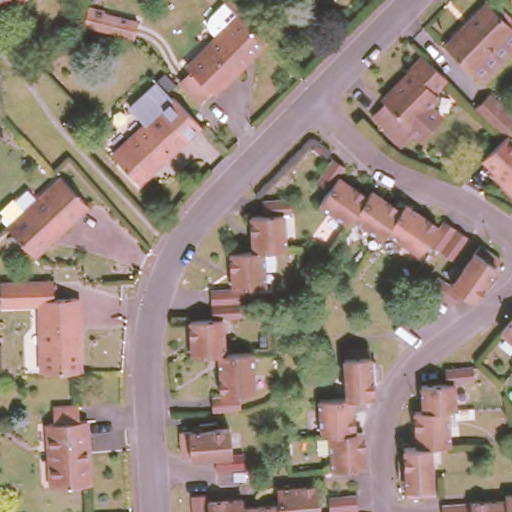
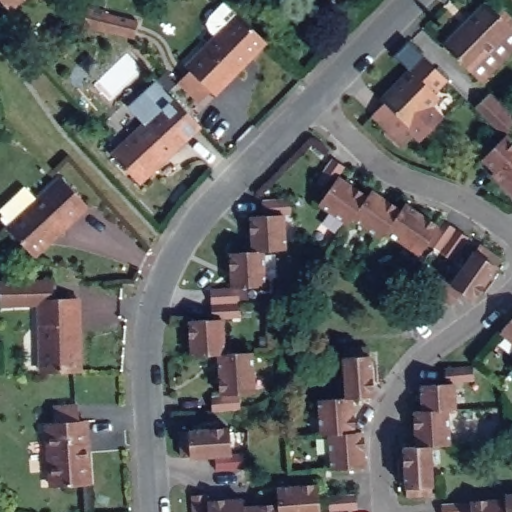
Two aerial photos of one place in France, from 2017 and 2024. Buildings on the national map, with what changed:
unchanged [(4,0),(14,0),(8,5),(4,0)]
unchanged [(440,38),(477,0),(497,0),(508,11),(504,16),(507,18),(465,62),(440,38)]
unchanged [(89,6),(105,11),(104,13),(137,23),(132,41),(83,26),(89,6)]
unchanged [(187,73),(217,42),(209,35),(206,29),(210,22),(224,7),(237,20),(264,46),(212,99),(209,95),(197,107),(179,87),(190,76),(187,73)]
unchanged [(507,18),(512,24),(512,37),(477,73),(465,62),(507,18)]
unchanged [(415,129),(402,142),(372,111),(384,99),(382,97),(411,67),(409,65),(422,52),(447,76),(434,89),(438,92),(427,102),(442,117),(422,136),(415,129)]
unchanged [(175,136),(185,147),(135,192),(110,165),(159,122),(155,118),(158,116),(148,105),(160,93),(169,102),(188,124),(175,136)]
unchanged [(511,125),(499,137),(470,109),(482,97),(511,125)]
unchanged [(512,149),(512,197),(488,172),(490,171),(477,159),(499,137),(512,150),(512,149)]
unchanged [(449,254),(425,237),(415,251),(382,228),(377,235),(348,215),(344,221),(315,201),(324,187),(312,179),(328,156),(340,164),(334,174),(362,194),(367,187),(395,208),(400,201),(435,224),(440,217),(464,234),(449,254)]
unchanged [(5,208),(29,185),(40,197),(65,175),(90,201),(37,251),(12,224),(13,224),(5,215),(5,208)]
unchanged [(213,391),(223,390),(220,348),(193,350),(191,315),(214,313),(212,283),(234,282),(231,246),(254,245),(251,210),(263,209),(262,194),(290,192),(292,207),(284,207),(286,242),(264,244),(266,280),(240,281),(242,312),(224,312),(225,348),(253,347),(256,387),(242,388),(243,402),(214,405),(213,391)]
unchanged [(497,256),(469,296),(457,288),(449,301),(426,285),(434,272),(448,282),(476,242),(497,256)]
unchanged [(55,292),(44,293),(45,327),(35,326),(34,303),(0,303),(0,296),(0,275),(55,274),(55,292)]
unchanged [(45,327),(44,293),(55,292),(80,292),(83,367),(46,368),(45,327)]
unchanged [(498,328),(512,312),(512,340),(498,328)]
unchanged [(362,465),(330,467),(327,432),(320,433),(317,398),(345,396),(340,347),(366,345),(370,393),(349,396),(352,431),(360,430),(362,465)]
unchanged [(411,488),(407,440),(420,438),(417,403),(425,403),(424,377),(449,376),(447,361),(476,358),(477,373),(457,375),(457,401),(450,402),(452,436),(432,437),(436,486),(411,488)]
unchanged [(47,422),(52,422),(51,407),(78,406),(80,421),(84,421),(85,442),(88,442),(90,467),(87,467),(89,485),(52,487),(47,422)]
unchanged [(182,426),(232,422),(234,448),(246,447),(247,462),(219,464),(217,450),(185,452),(182,426)]
unchanged [(204,488),(205,496),(240,493),(241,502),(275,499),(275,482),(315,480),(316,512),(191,512),(189,490),(204,488)]
unchanged [(319,506),(327,505),(325,491),(355,487),(355,502),(347,502),(348,512),(319,512),(319,506)]
unchanged [(440,501),(504,497),(504,492),(512,491),(512,512),(441,512),(440,501)]

